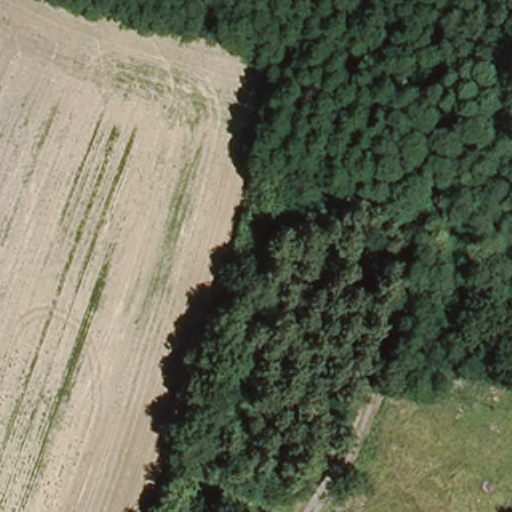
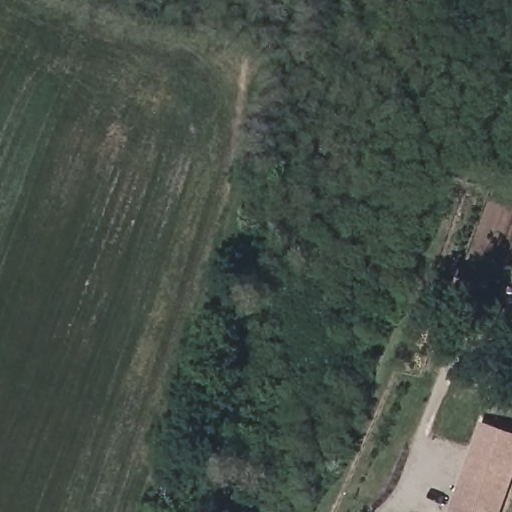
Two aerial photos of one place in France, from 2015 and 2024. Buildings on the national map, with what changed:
new [(482,422),(512,431),(512,483),(502,512),(449,512),(482,422)]

